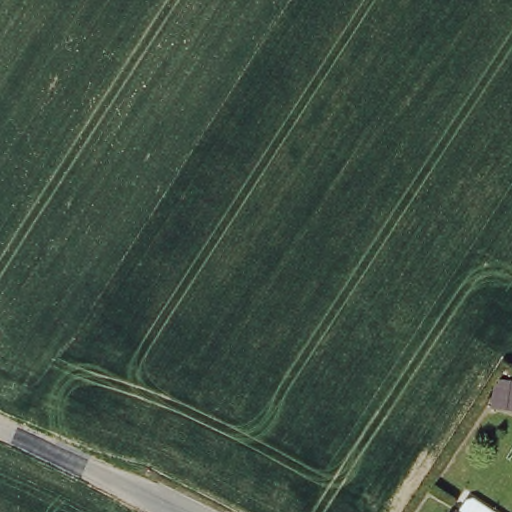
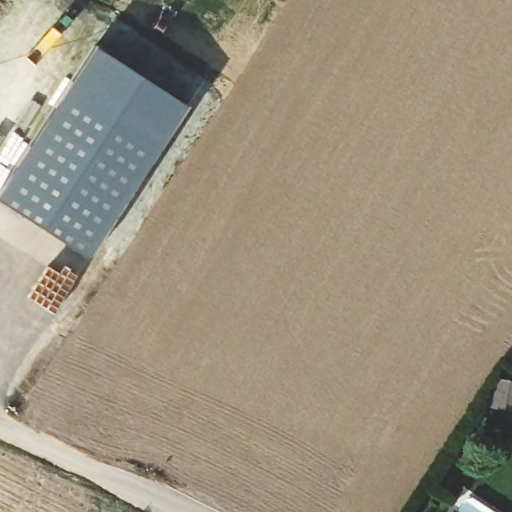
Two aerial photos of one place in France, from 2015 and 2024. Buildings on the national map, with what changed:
new [(91,45),(185,106),(86,257),(0,202),(0,184),(91,45)]
new [(495,378),(512,381),(512,412),(490,408),(495,378)]
unchanged [(458,510),(470,495),(497,512),(447,512),(450,506),(458,510)]

